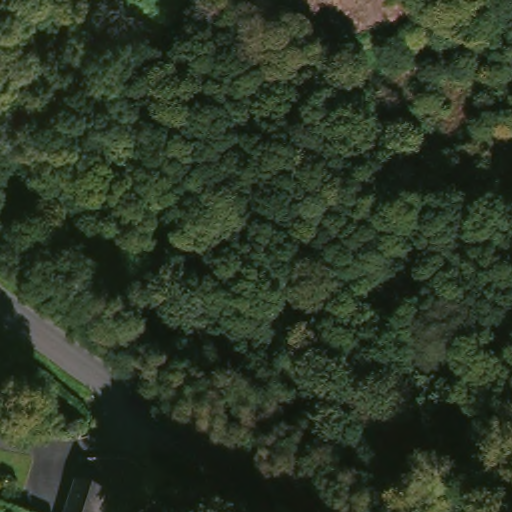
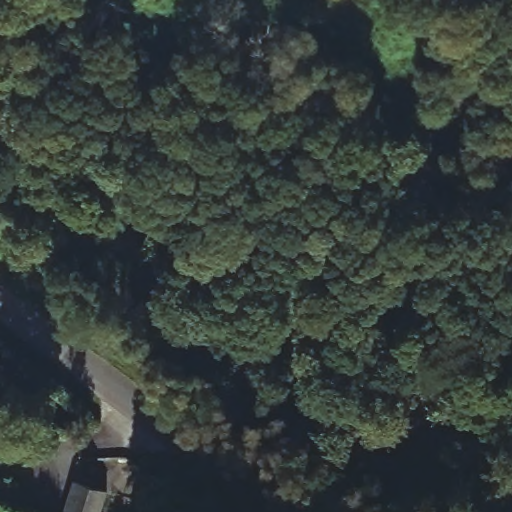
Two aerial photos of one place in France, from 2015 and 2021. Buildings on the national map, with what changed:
unchanged [(77,484),(105,494),(99,512),(67,512),(77,484)]

